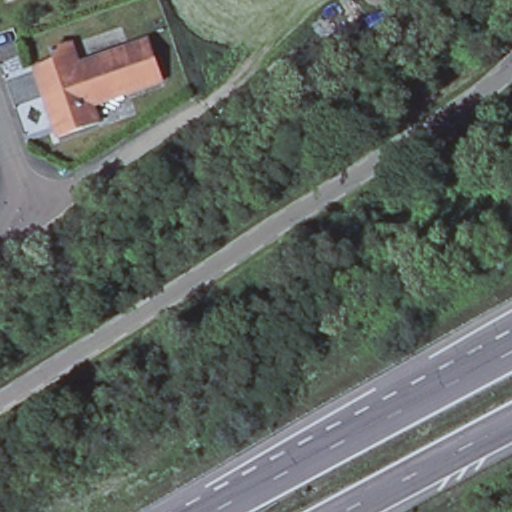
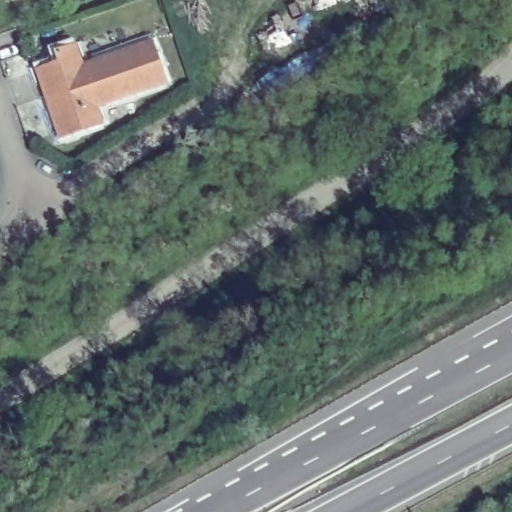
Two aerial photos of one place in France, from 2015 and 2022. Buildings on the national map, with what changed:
unchanged [(7,1),(6,0),(8,0),(7,1)]
unchanged [(32,72),(54,64),(50,54),(70,47),(77,67),(147,43),(162,84),(92,108),(97,124),(55,139),(32,72)]

